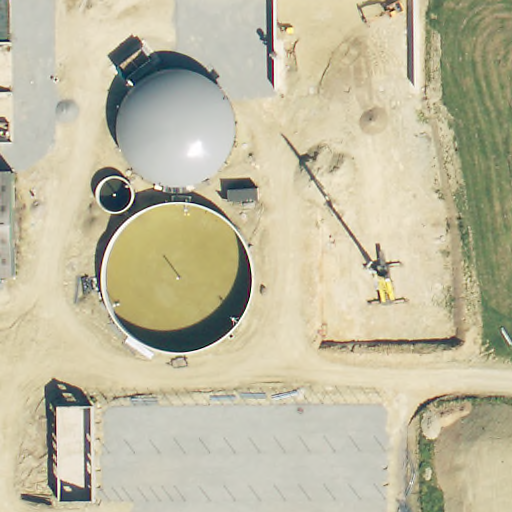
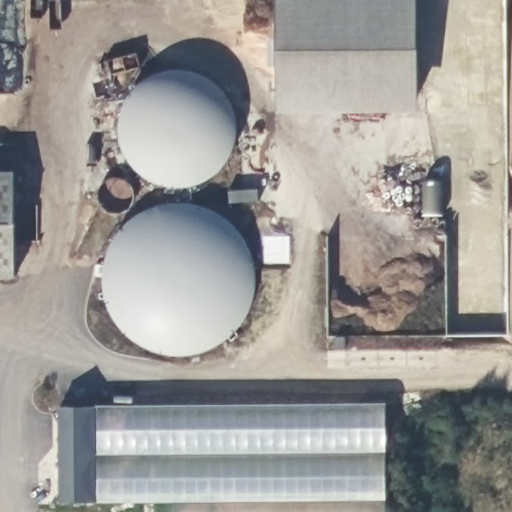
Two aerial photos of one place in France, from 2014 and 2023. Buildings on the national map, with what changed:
new [(277,113),(276,0),(415,0),(416,111),(277,113)]
unchanged [(15,175),(14,277),(0,276),(0,174),(15,175)]
new [(386,512),(172,512),(172,502),(97,502),(97,405),(385,403),(386,512)]
new [(59,502),(57,407),(97,405),(97,502),(59,502)]

